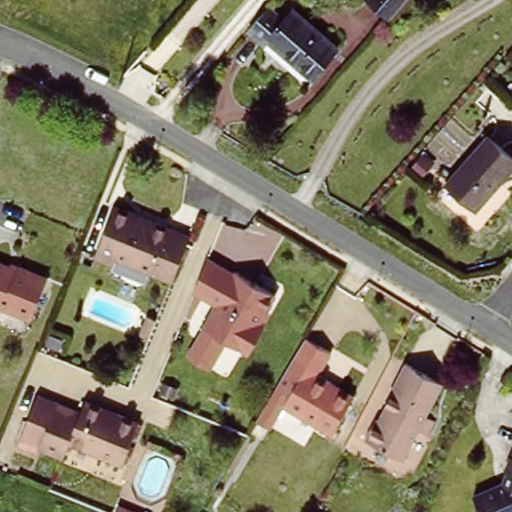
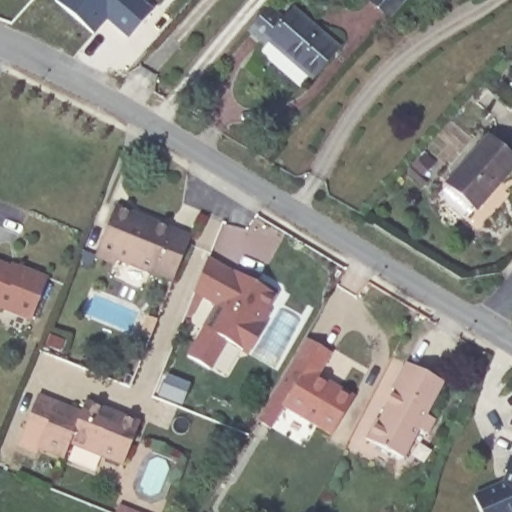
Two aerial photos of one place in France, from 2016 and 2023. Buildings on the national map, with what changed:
new [(127,38),(105,17),(93,33),(55,0),(141,0),(152,9),(127,38)]
unchanged [(297,12),(304,4),(347,39),(322,70),(278,35),(273,40),(256,27),(279,0),(283,0),(297,12)]
unchanged [(389,26),(363,0),(411,0),(389,26)]
unchanged [(445,180),(475,148),(486,137),(512,157),(512,160),(502,172),(475,205),(445,180)]
unchanged [(168,282),(111,259),(107,265),(92,259),(114,207),(186,236),(168,282)]
unchanged [(16,271),(45,283),(30,321),(0,309),(0,267),(17,274),(16,271)]
unchanged [(246,352),(239,347),(200,324),(232,271),(272,295),(255,323),(260,328),(246,352)]
unchanged [(302,336),(327,352),(315,374),(350,395),(327,434),(277,406),(299,366),(289,359),(302,336)]
unchanged [(429,411),(437,415),(430,431),(420,428),(405,457),(367,437),(378,414),(382,417),(395,390),(392,387),(405,361),(443,381),(429,411)]
unchanged [(122,467),(70,446),(64,460),(38,449),(57,403),(80,411),(85,403),(137,424),(122,467)]
unchanged [(478,512),(474,500),(505,489),(509,478),(503,474),(512,458),(512,512),(478,512)]

